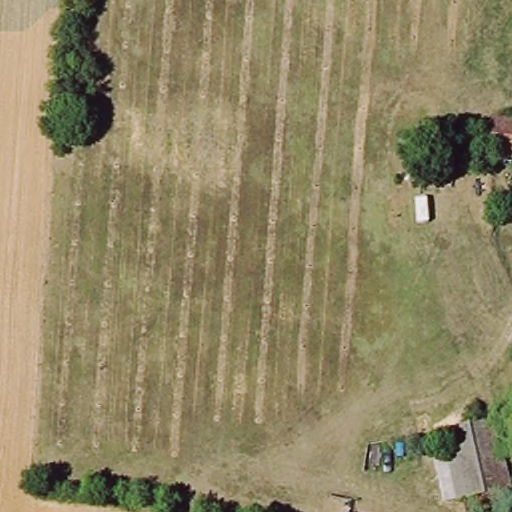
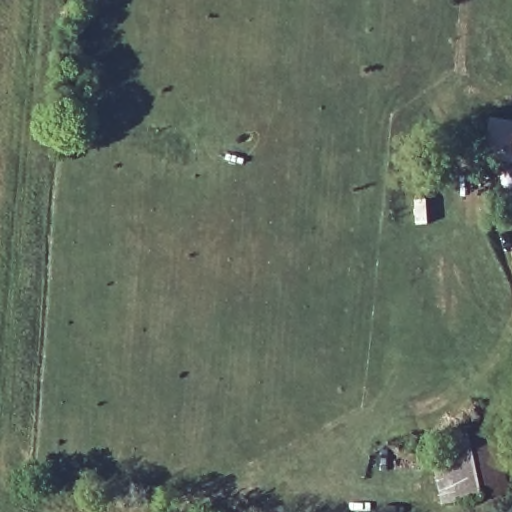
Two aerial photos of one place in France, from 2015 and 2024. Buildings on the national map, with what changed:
unchanged [(484,160),(491,122),(512,126),(512,165),(484,160)]
unchanged [(509,494),(459,505),(444,439),(494,429),(509,494)]

